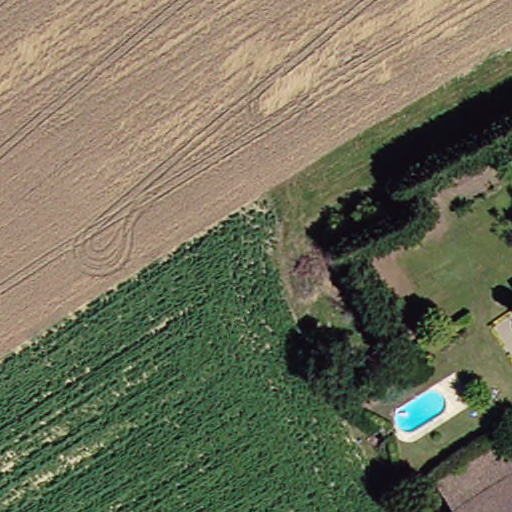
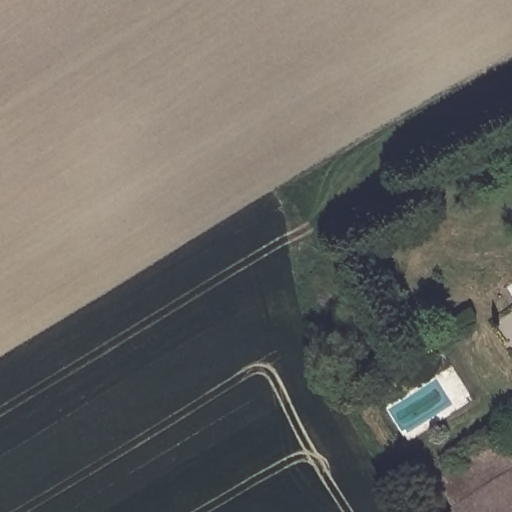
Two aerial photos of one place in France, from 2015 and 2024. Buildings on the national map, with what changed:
unchanged [(512,445),(512,512),(467,512),(463,506),(444,478),(506,436),(512,445)]
unchanged [(463,506),(467,512),(453,512),(463,506)]

